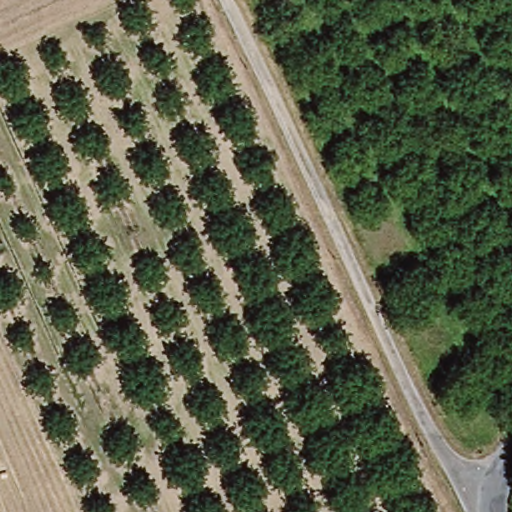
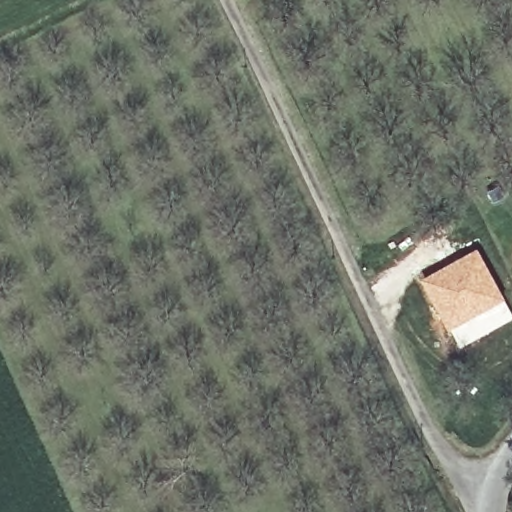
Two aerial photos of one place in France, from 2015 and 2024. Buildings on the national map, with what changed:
new [(479,248),(507,300),(449,331),(422,280),(479,248)]
new [(512,312),(512,321),(459,349),(449,331),(507,300),(512,312)]

